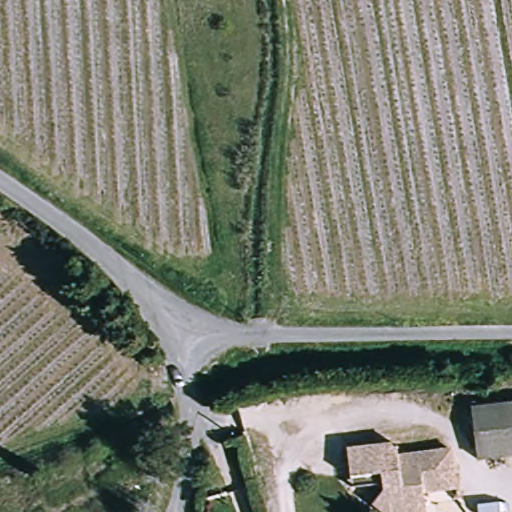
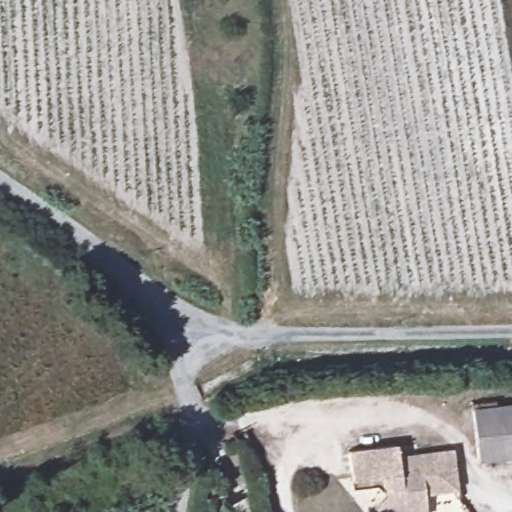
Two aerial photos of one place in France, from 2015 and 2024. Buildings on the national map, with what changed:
unchanged [(512,404),(512,456),(477,460),(471,409),(512,404)]
unchanged [(385,512),(372,500),(383,486),(382,480),(351,484),(350,474),(347,446),(395,440),(397,451),(399,464),(419,461),(417,450),(451,445),(455,485),(424,488),(425,497),(426,511),(418,512),(385,512)]

